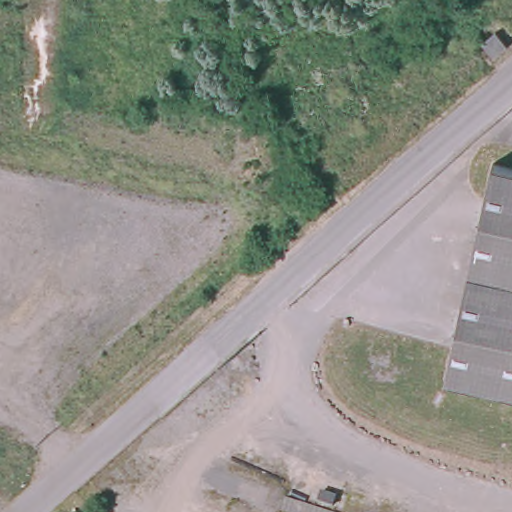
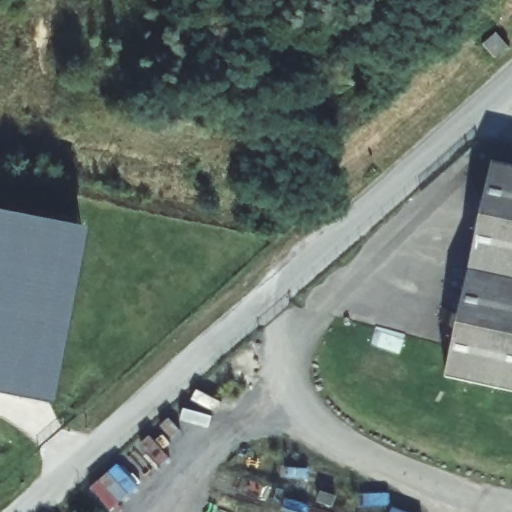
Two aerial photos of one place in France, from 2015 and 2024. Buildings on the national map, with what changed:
unchanged [(493,160),(512,165),(512,218),(475,246),(493,160)]
new [(40,401),(0,393),(0,211),(75,226),(40,401)]
unchanged [(448,374),(475,246),(512,218),(512,389),(448,374)]

